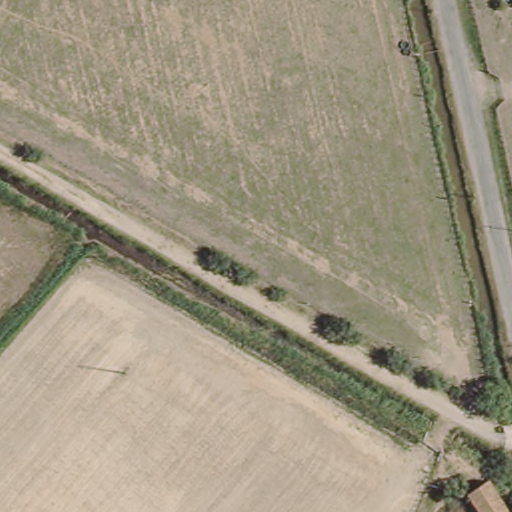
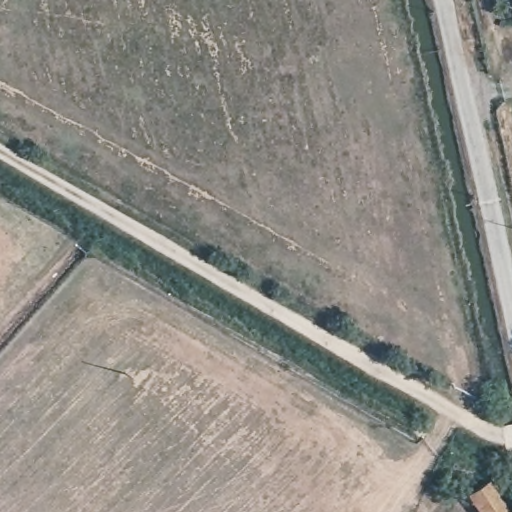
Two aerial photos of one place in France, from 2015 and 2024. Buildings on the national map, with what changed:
unchanged [(503,512),(472,512),(459,497),(485,481),(505,511),(503,512)]

